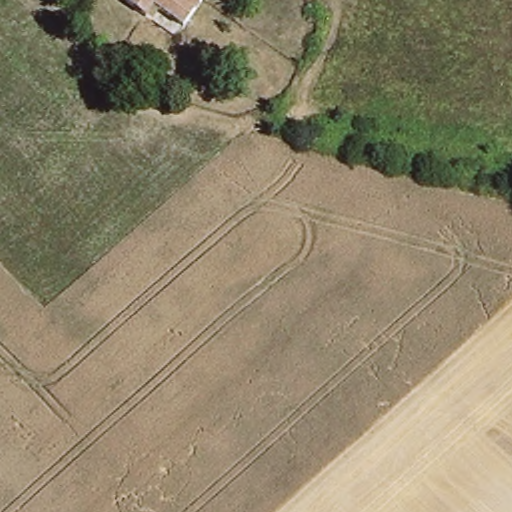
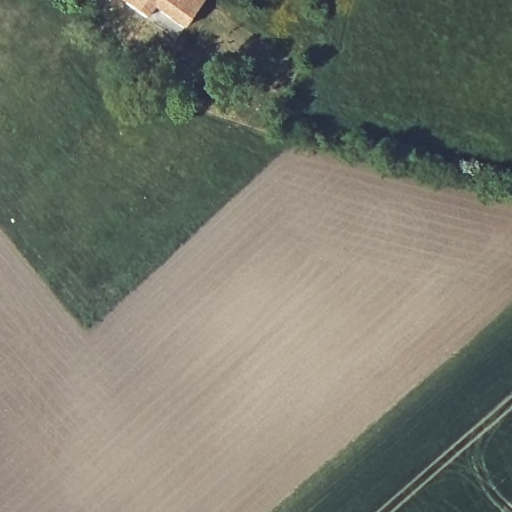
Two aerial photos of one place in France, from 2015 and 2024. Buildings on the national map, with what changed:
unchanged [(158,8),(150,20),(124,0),(201,0),(184,23),(158,8)]

